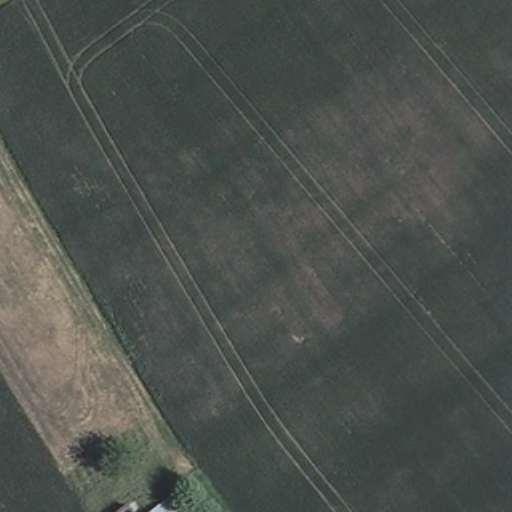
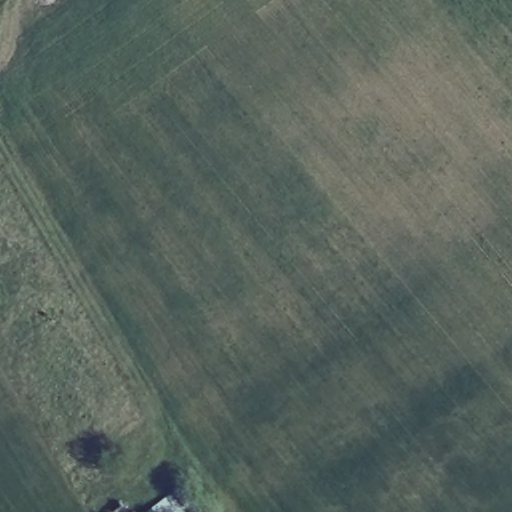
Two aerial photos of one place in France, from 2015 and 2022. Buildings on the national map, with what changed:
unchanged [(153,511),(175,493),(193,512),(153,512),(153,511)]
unchanged [(129,512),(115,512),(123,505),(129,512)]

